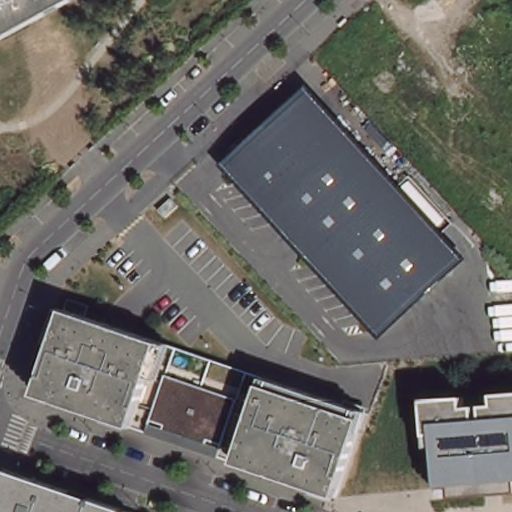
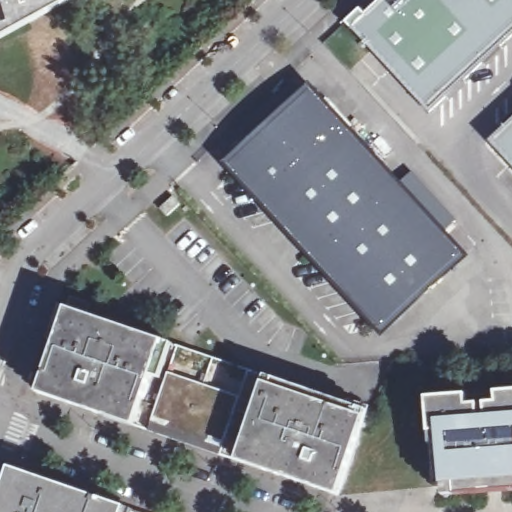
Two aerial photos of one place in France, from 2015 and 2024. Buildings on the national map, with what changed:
unchanged [(1,34),(0,32),(0,0),(40,0),(46,10),(1,34)]
unchanged [(40,0),(63,0),(46,10),(40,0)]
new [(351,28),(365,15),(360,10),(371,0),(512,0),(512,34),(429,110),(351,28)]
unchanged [(383,337),(224,162),(309,85),(470,257),(383,337)]
new [(490,141),(512,121),(512,165),(490,141)]
unchanged [(71,297),(92,305),(88,315),(142,333),(165,341),(134,425),(114,418),(107,416),(69,398),(67,403),(52,398),(39,393),(67,308),(71,297)]
unchanged [(165,341),(262,375),(235,460),(144,429),(134,425),(165,341)]
unchanged [(262,375),(368,410),(348,468),(339,495),(334,494),(309,485),(311,481),(269,471),(268,471),(242,462),(235,460),(262,375)]
unchanged [(512,390),(512,489),(440,494),(436,441),(425,442),(427,397),(512,390)]
unchanged [(122,512),(0,512),(0,490),(9,466),(125,505),(122,512)]

